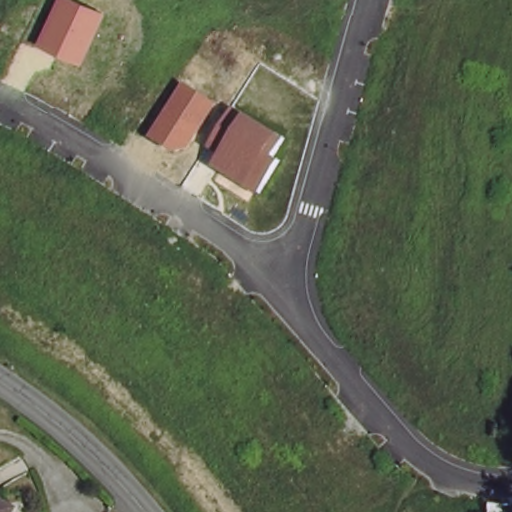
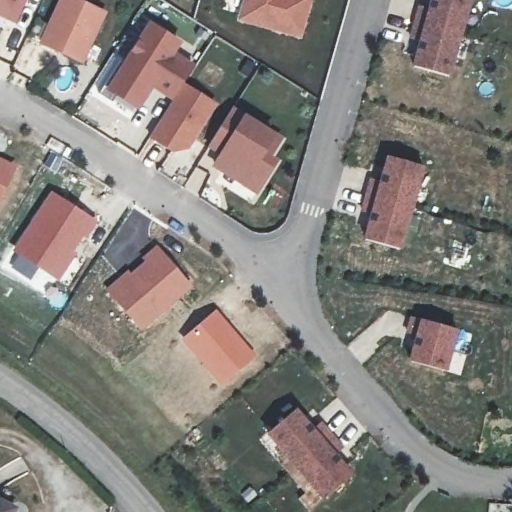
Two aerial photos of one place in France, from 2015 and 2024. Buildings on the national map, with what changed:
new [(15,15),(0,7),(0,0),(23,0),(15,15)]
unchanged [(108,12),(84,65),(38,44),(58,0),(80,0),(108,12)]
new [(241,0),(312,0),(300,39),(235,21),(241,0)]
new [(451,77),(410,66),(417,42),(406,39),(415,5),(426,9),(428,0),(472,0),(451,77)]
new [(152,11),(186,33),(172,54),(193,69),(183,84),(175,97),(158,87),(144,106),(107,81),(152,12),(152,11)]
unchanged [(217,105),(188,149),(167,150),(148,138),(175,97),(183,84),(217,105)]
unchanged [(282,137),(270,157),(277,160),(257,192),(211,166),(218,154),(207,148),(232,108),(282,137)]
new [(0,202),(0,156),(18,164),(0,202)]
new [(402,251),(362,240),(368,215),(358,212),(368,179),(377,182),(385,157),(426,167),(402,251)]
new [(58,282),(12,251),(50,192),(97,221),(58,282)]
new [(157,244),(193,287),(142,331),(105,289),(157,244)]
new [(217,308),(257,356),(220,387),(180,338),(217,308)]
new [(447,372),(407,362),(414,335),(404,332),(409,316),(458,329),(447,372)]
new [(265,435),(295,408),(352,475),(322,501),(265,435)]
unchanged [(0,512),(0,510),(3,512),(0,512)]

